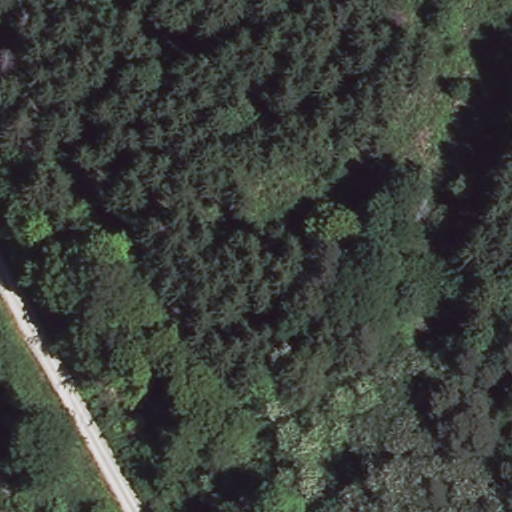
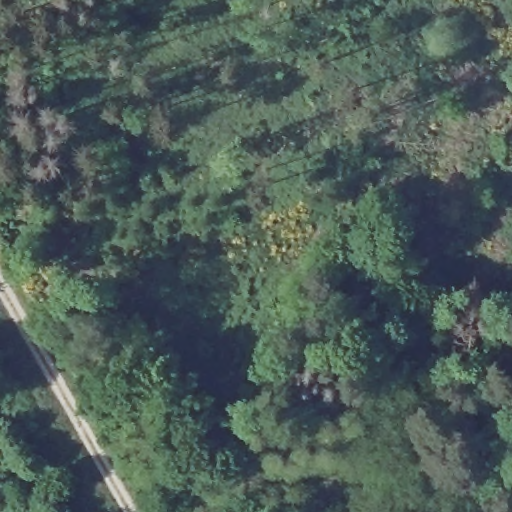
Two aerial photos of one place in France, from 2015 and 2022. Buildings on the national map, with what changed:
[]

